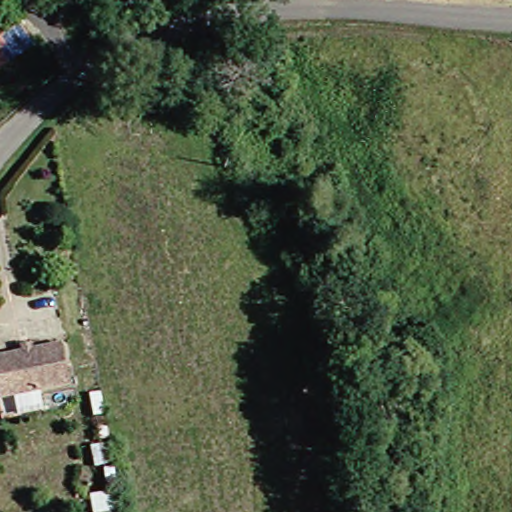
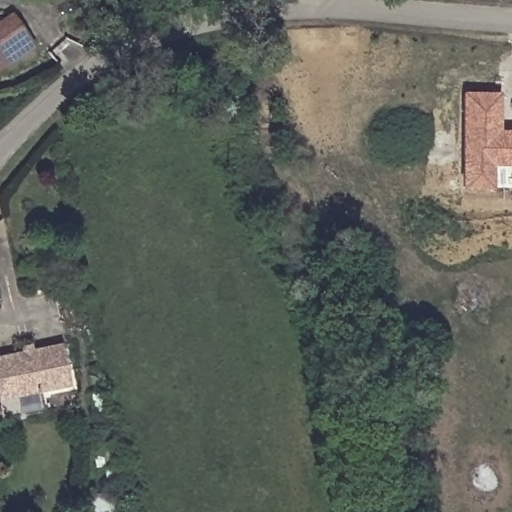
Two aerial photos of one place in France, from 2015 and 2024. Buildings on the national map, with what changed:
unchanged [(30,47),(0,67),(0,23),(9,16),(30,47)]
new [(512,130),(512,166),(490,166),(490,189),(458,190),(459,92),(499,93),(497,130),(512,130)]
unchanged [(64,385),(0,397),(0,354),(55,343),(64,385)]
unchanged [(114,491),(118,512),(87,512),(85,496),(114,491)]

